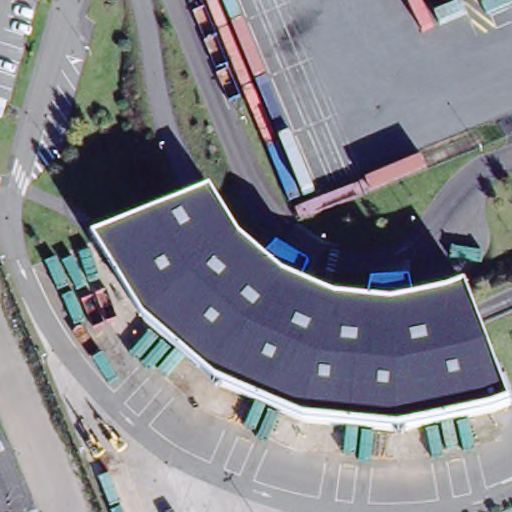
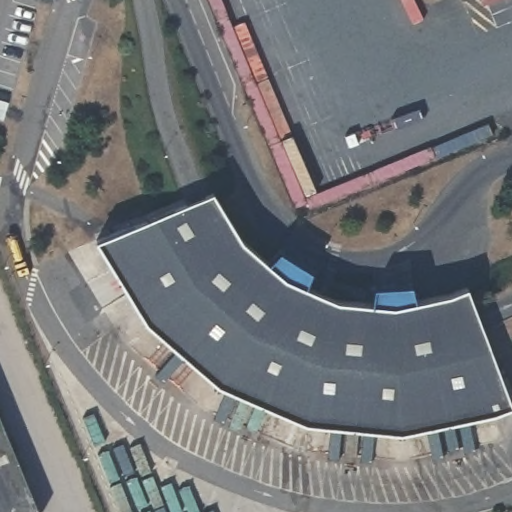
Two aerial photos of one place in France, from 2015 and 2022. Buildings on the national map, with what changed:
unchanged [(245,233),(285,272),(343,297),(412,302),(471,286),(512,395),(512,404),(405,427),(311,417),(225,379),(150,318),(101,236),(219,188),(245,233)]
unchanged [(38,512),(0,512),(0,419),(38,512)]

